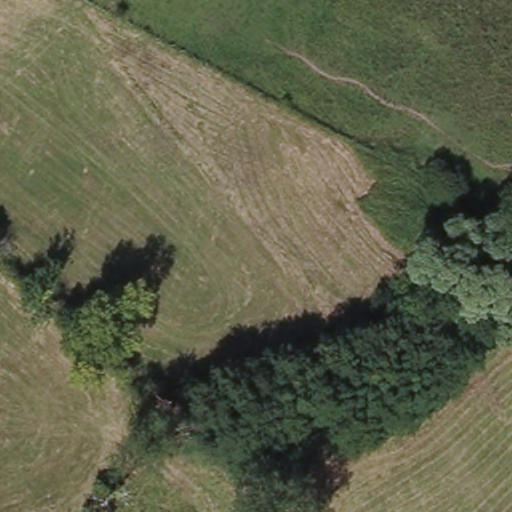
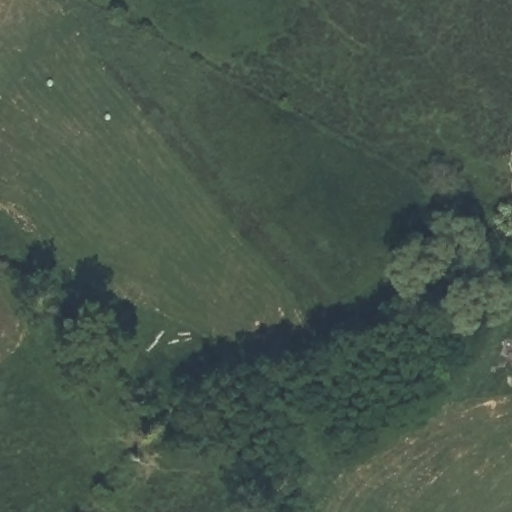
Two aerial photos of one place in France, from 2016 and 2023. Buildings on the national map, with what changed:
[]

